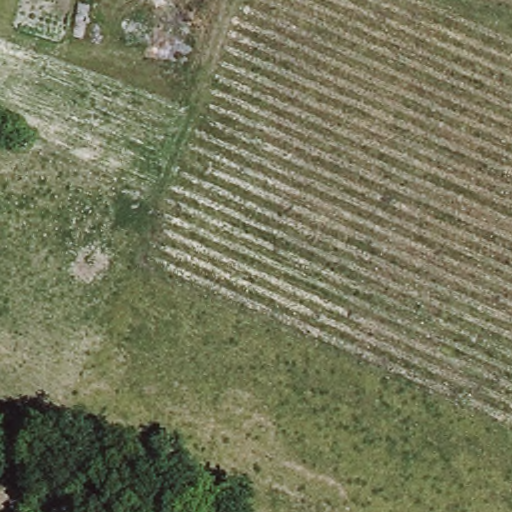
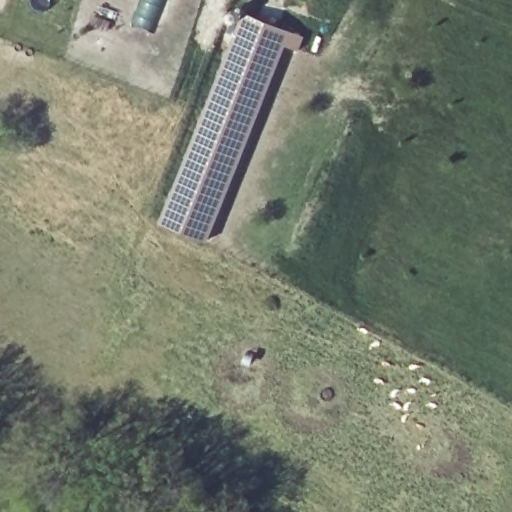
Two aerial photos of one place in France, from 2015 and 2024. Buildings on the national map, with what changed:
new [(245,15),(289,30),(209,242),(165,225),(245,15)]

